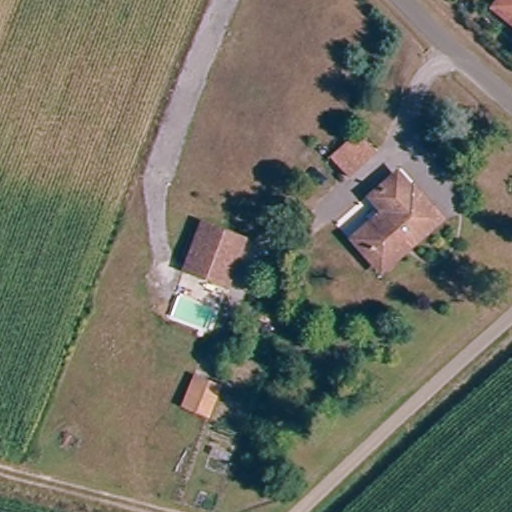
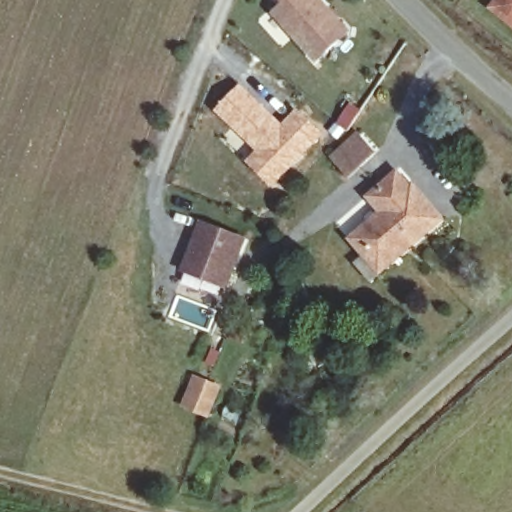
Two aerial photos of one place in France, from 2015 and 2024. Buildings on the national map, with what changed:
new [(319,0),(326,7),(333,15),(349,33),(317,61),(275,14),(286,4),(282,0),(319,0)]
unchanged [(491,10),(499,0),(512,0),(512,27),(491,10)]
new [(239,81),(282,122),(297,106),(326,133),(272,188),(244,160),(253,150),(212,109),(239,81)]
unchanged [(360,133),(377,151),(348,177),(332,158),(360,133)]
unchanged [(368,254),(355,238),(386,211),(373,196),(398,175),(411,190),(414,188),(440,218),(388,262),(381,269),(368,254)]
unchanged [(232,286),(190,270),(208,223),(250,239),(232,286)]
unchanged [(219,387),(210,412),(189,404),(198,379),(219,387)]

